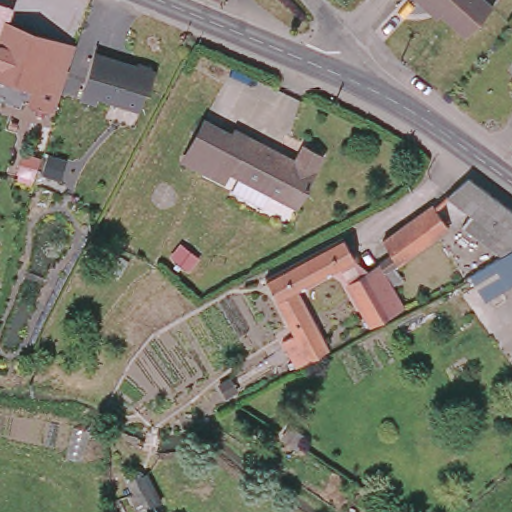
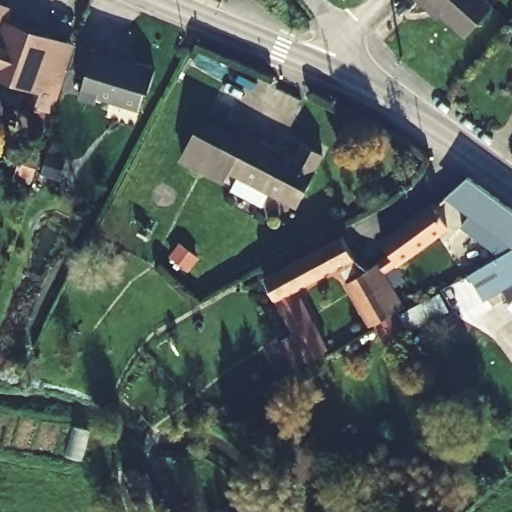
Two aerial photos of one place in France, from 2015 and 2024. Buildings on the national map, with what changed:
unchanged [(495,11),(470,38),(430,1),(424,7),(416,0),(484,0),(495,11)]
unchanged [(55,112),(26,104),(29,92),(0,82),(0,25),(2,17),(77,40),(55,112)]
unchanged [(143,111),(96,97),(95,101),(79,97),(94,47),(158,67),(143,111)]
unchanged [(512,60),(512,64),(510,62),(512,60)]
unchanged [(179,166),(200,120),(234,134),(300,163),(306,149),(326,159),(302,208),(272,195),(265,209),(236,196),(242,181),(232,176),(227,187),(212,180),(179,166)]
unchanged [(500,237),(491,249),(465,231),(475,218),(452,201),(467,182),(512,213),(512,246),(500,237)]
unchanged [(445,236),(382,280),(376,268),(389,262),(378,244),(426,212),(445,236)]
unchanged [(338,237),(350,261),(290,292),(313,337),(326,330),(335,346),(292,370),(282,351),(295,343),(260,277),(338,237)]
unchanged [(472,298),(464,283),(479,274),(473,265),(487,256),(493,266),(512,254),(512,275),(472,298)]
unchanged [(343,288),(376,268),(382,280),(401,313),(368,332),(343,288)]
unchanged [(145,512),(122,475),(138,464),(161,506),(152,512),(145,512)]

